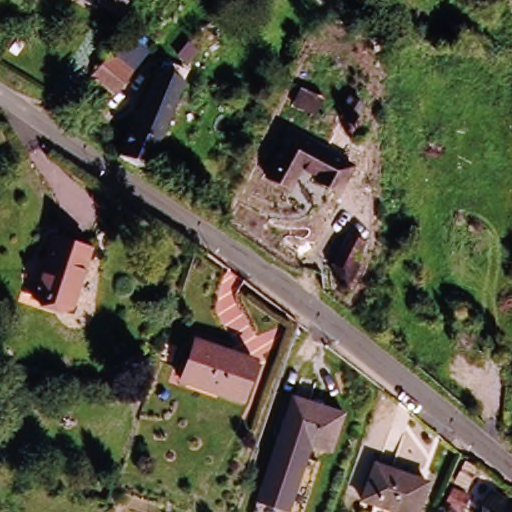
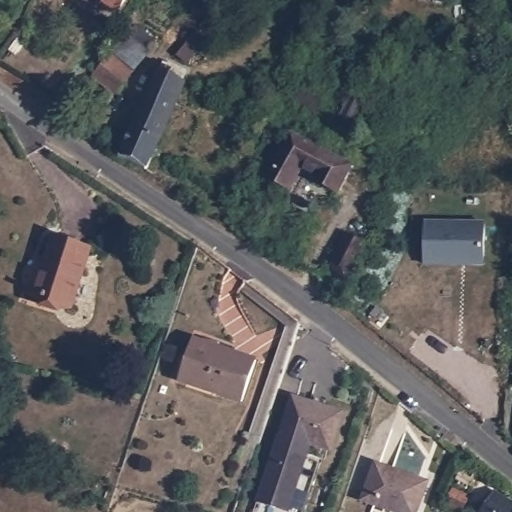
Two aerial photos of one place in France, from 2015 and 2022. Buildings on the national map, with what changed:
unchanged [(99,0),(123,0),(115,12),(99,0)]
unchanged [(95,82),(110,62),(127,75),(112,96),(95,82)]
unchanged [(180,97),(142,176),(117,160),(162,63),(190,75),(180,97)]
unchanged [(285,135),(349,161),(337,195),(317,187),(320,178),(298,170),(287,197),(265,187),(285,135)]
new [(425,224),(485,226),(484,267),(424,266),(425,224)]
unchanged [(94,242),(76,306),(33,297),(49,227),(94,242)]
unchanged [(342,277),(360,241),(377,250),(355,298),(342,277)]
demolished [(442,294),(460,292),(463,321),(445,323),(442,294)]
unchanged [(196,341),(258,360),(247,398),(184,381),(196,341)]
unchanged [(287,397),(344,402),(340,437),(283,433),(287,397)]
unchanged [(337,437),(335,452),(313,448),(290,512),(283,512),(257,502),(283,433),(337,437)]
unchanged [(372,462),(425,478),(415,512),(406,512),(361,498),(372,462)]
unchanged [(460,467),(470,469),(467,488),(456,487),(460,467)]
unchanged [(512,502),(512,512),(477,512),(490,489),(512,502)]
unchanged [(451,497),(465,501),(463,512),(450,512),(448,512),(451,497)]

